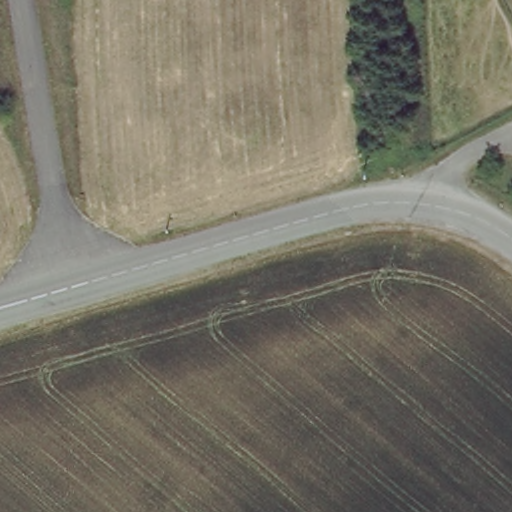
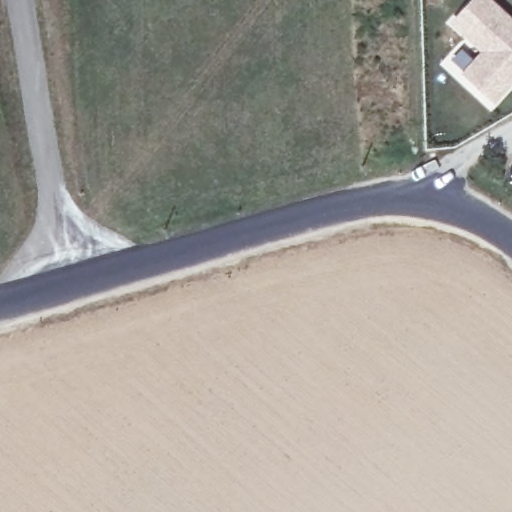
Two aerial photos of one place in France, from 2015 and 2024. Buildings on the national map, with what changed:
new [(456,24),(479,0),(488,0),(512,23),(512,85),(495,103),(466,76),(487,54),(456,24)]

